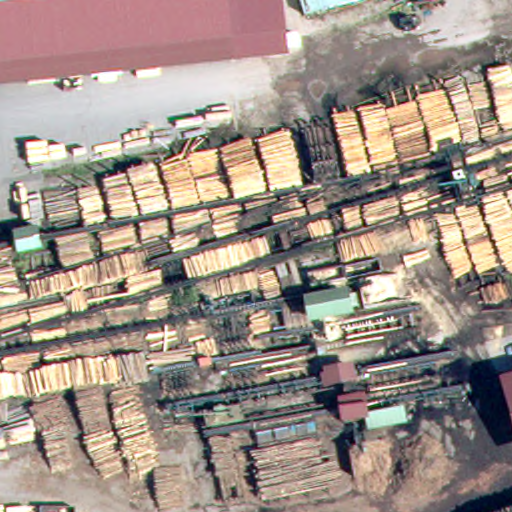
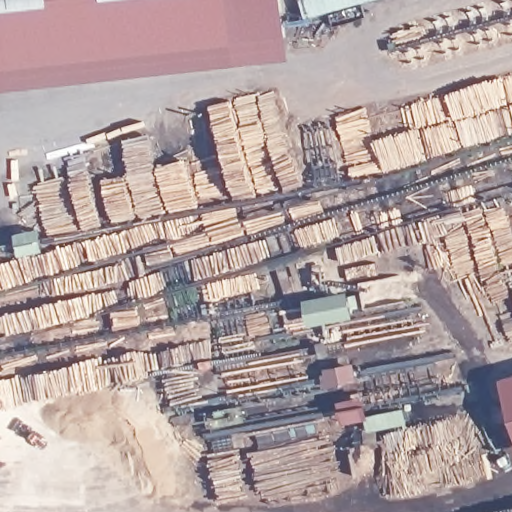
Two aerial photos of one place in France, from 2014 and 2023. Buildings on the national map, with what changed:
unchanged [(240,62),(0,89),(0,0),(233,0),(240,62)]
unchanged [(290,55),(240,62),(233,0),(283,0),(290,55)]
unchanged [(306,18),(301,0),(371,0),(306,18)]
unchanged [(354,297),(359,321),(314,325),(308,305),(354,297)]
unchanged [(512,373),(512,418),(499,376),(512,373)]

